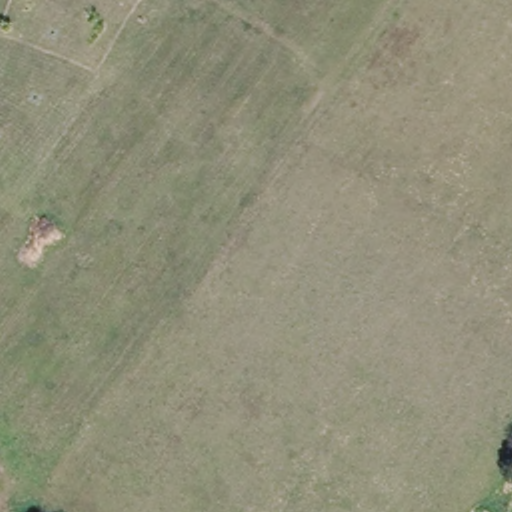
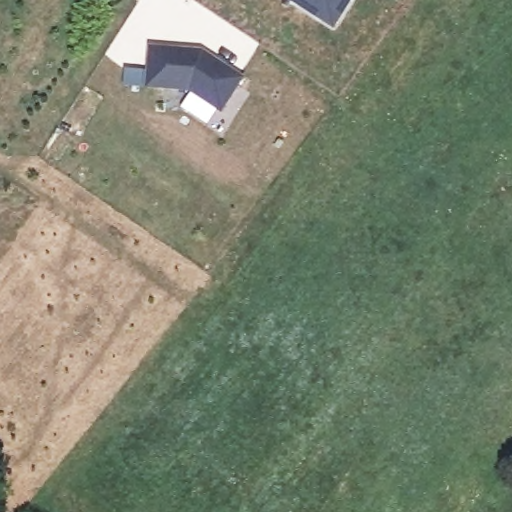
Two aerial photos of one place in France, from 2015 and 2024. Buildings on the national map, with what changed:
new [(354,0),(334,31),(318,21),(295,6),(286,0),(354,0)]
new [(195,84),(153,81),(156,42),(207,46),(217,52),(247,72),(226,105),(195,84)]
new [(145,80),(130,79),(131,64),(146,65),(145,80)]

